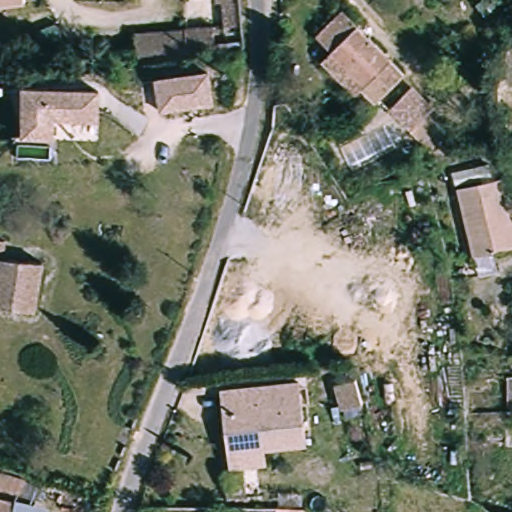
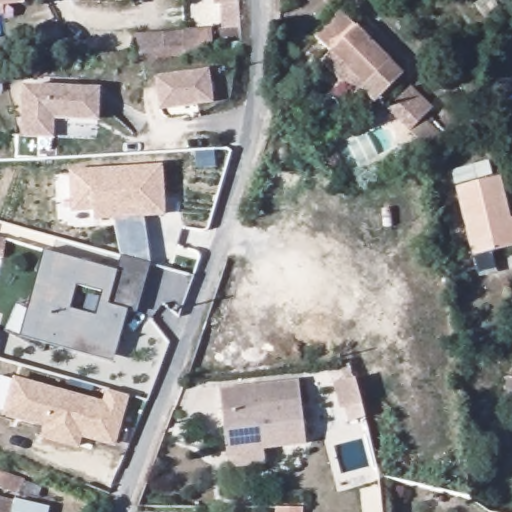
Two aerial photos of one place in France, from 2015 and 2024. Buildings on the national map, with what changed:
unchanged [(0,5),(0,0),(15,0),(15,3),(0,5)]
unchanged [(227,9),(246,7),(247,18),(248,28),(248,33),(230,35),(227,9)]
unchanged [(378,104),(364,89),(358,98),(320,66),(332,54),(310,37),(332,14),(389,58),(405,75),(378,104)]
unchanged [(186,30),(214,29),(217,58),(187,61),(138,66),(136,41),(186,39),(186,30)]
unchanged [(208,101),(162,104),(162,76),(208,75),(208,101)]
unchanged [(438,115),(429,124),(461,158),(436,157),(393,112),(414,89),(438,115)]
unchanged [(100,123),(59,123),(58,142),(29,142),(29,94),(100,94),(100,123)]
new [(121,257),(113,220),(94,220),(93,210),(71,213),(69,172),(162,164),(166,215),(144,218),(150,264),(121,257)]
unchanged [(511,248),(471,255),(455,186),(497,177),(511,248)]
demolished [(0,249),(0,238),(2,239),(0,249)]
new [(4,259),(0,259),(0,240),(8,241),(4,259)]
new [(118,272),(121,257),(150,264),(136,314),(128,311),(113,364),(21,337),(44,249),(118,272)]
demolished [(35,313),(0,307),(0,256),(41,261),(35,313)]
unchanged [(361,394),(336,399),(330,376),(344,372),(354,369),(361,394)]
unchanged [(504,399),(506,377),(512,377),(512,400),(504,399)]
new [(105,406),(109,392),(127,397),(114,446),(82,437),(78,449),(37,438),(41,426),(6,417),(17,381),(89,402),(105,406)]
new [(216,390),(296,382),(298,401),(253,409),(220,414),(216,390)]
unchanged [(220,414),(253,409),(298,401),(304,446),(260,452),(262,470),(229,474),(226,456),(220,414)]
unchanged [(10,512),(0,512),(0,498),(13,501),(10,512)]

